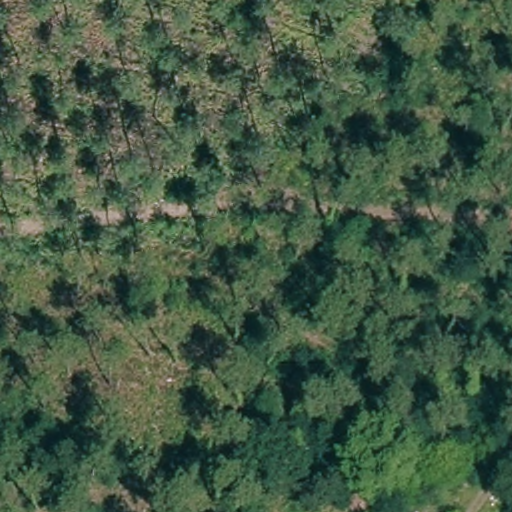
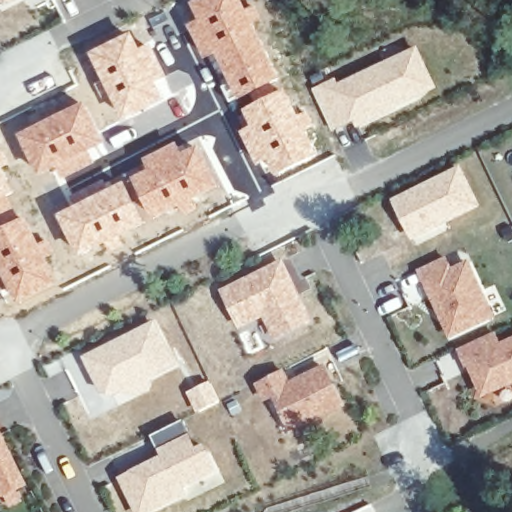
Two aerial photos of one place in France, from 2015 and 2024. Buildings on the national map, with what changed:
new [(0,0),(18,0),(4,7),(0,0)]
new [(191,4),(198,0),(243,0),(247,7),(253,4),(260,18),(254,21),(282,78),(239,100),(215,54),(206,59),(188,26),(199,20),(191,4)]
new [(132,31),(142,49),(149,45),(167,78),(158,83),(167,98),(124,120),(89,53),(132,31)]
new [(438,90),(357,129),(354,121),(334,128),(315,88),(336,79),(339,84),(418,46),(438,90)]
new [(250,126),(242,110),(284,89),(320,153),(275,177),(266,163),(261,166),(241,131),(250,126)]
new [(86,101),(108,147),(92,153),(96,162),(62,179),(57,169),(39,177),(18,135),(86,101)]
new [(144,169),(140,163),(177,141),(183,151),(200,142),(221,186),(194,201),(197,207),(184,214),(180,207),(154,221),(131,177),(144,169)]
new [(16,192),(9,196),(16,208),(0,216),(0,162),(16,192)]
new [(481,207),(411,241),(391,200),(461,166),(481,207)]
new [(131,177),(154,221),(148,224),(115,242),(79,258),(57,215),(131,177)]
new [(24,215),(40,242),(46,238),(54,253),(47,257),(59,282),(16,304),(7,286),(0,290),(0,228),(24,215)]
new [(453,267),(470,260),(496,317),(449,339),(417,270),(448,257),(453,267)]
new [(313,322),(277,341),(264,318),(240,331),(219,290),(283,260),(313,322)]
new [(178,365),(153,376),(148,392),(137,396),(120,391),(110,395),(98,391),(81,357),(156,319),(178,365)]
new [(512,338),(512,385),(482,398),(468,367),(465,368),(457,349),(496,331),(501,343),(512,338)]
new [(291,380),(325,363),(346,407),(291,434),(274,398),(265,402),(255,384),(285,370),(291,380)]
new [(196,447),(204,442),(219,471),(184,487),(188,495),(153,512),(134,512),(117,477),(161,455),(150,435),(182,420),(196,447)]
new [(29,484),(6,496),(0,484),(0,431),(29,484)]
demolished [(367,486),(383,499),(372,512),(359,512),(366,503),(358,497),(367,486)]

